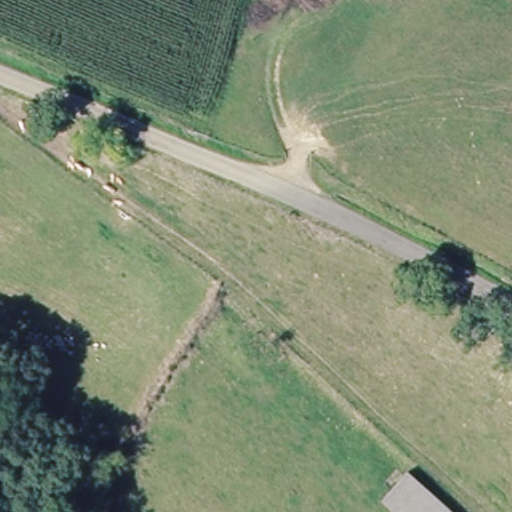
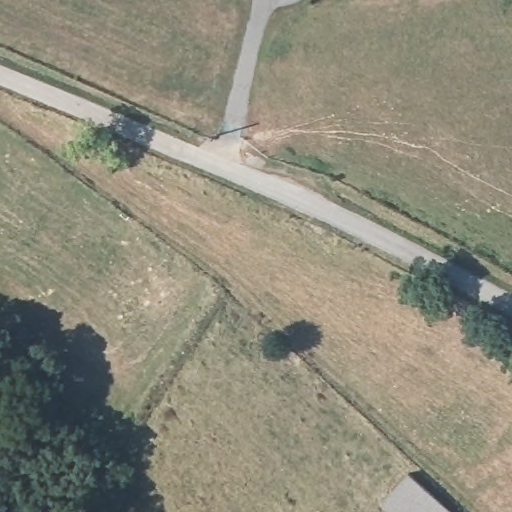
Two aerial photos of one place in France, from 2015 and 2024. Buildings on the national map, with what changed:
unchanged [(386,504),(414,475),(450,512),(394,512),(386,504)]

